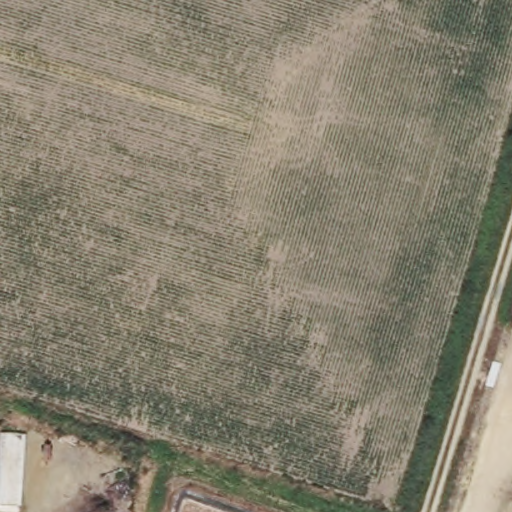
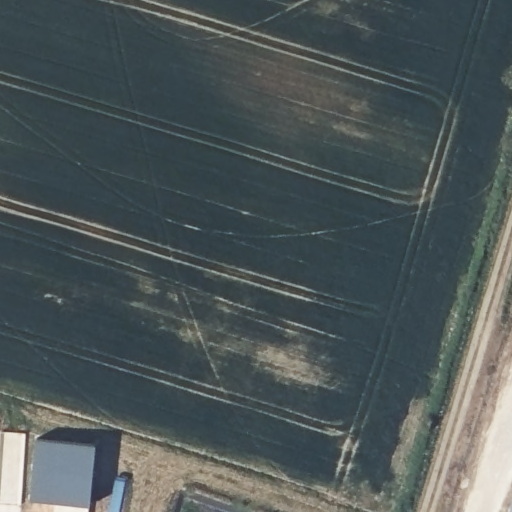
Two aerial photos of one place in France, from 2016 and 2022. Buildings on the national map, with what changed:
new [(96,442),(92,502),(32,497),(36,437),(96,442)]

